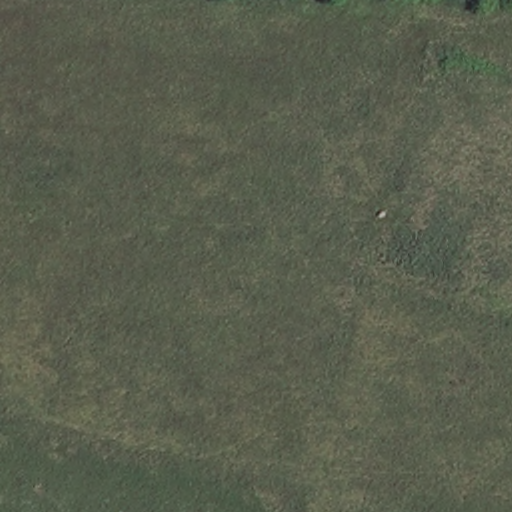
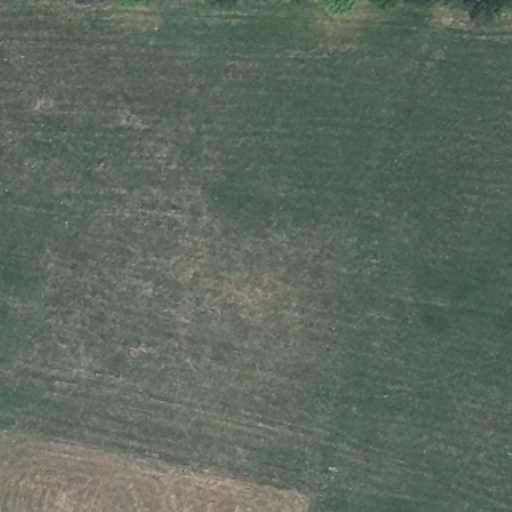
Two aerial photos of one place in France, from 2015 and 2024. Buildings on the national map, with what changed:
[]

